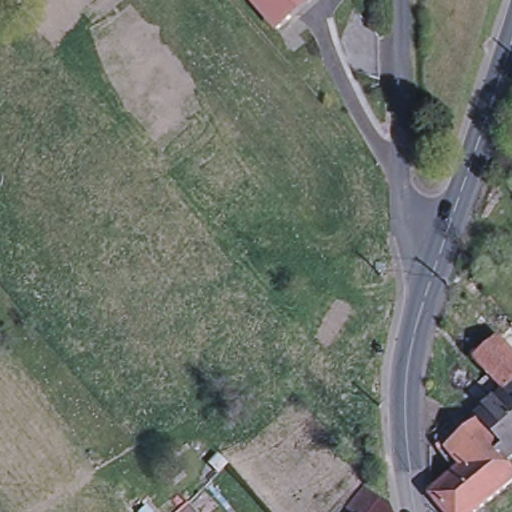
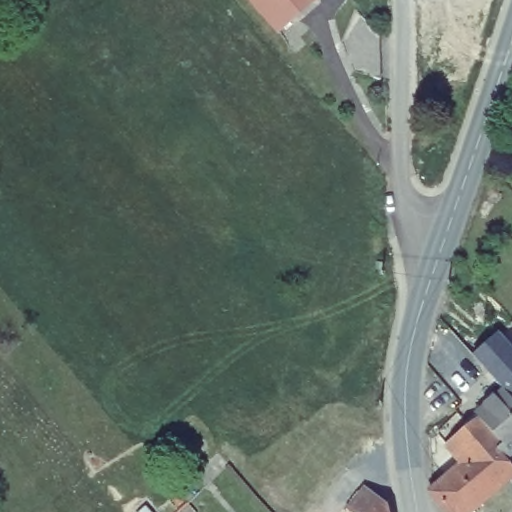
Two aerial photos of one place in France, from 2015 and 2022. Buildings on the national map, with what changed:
unchanged [(251,0),(309,0),(277,28),(251,0)]
unchanged [(355,9),(377,34),(378,81),(352,73),(341,43),(355,9)]
unchanged [(512,392),(510,390),(479,356),(512,327),(512,392)]
unchanged [(466,465),(452,447),(475,428),(485,419),(481,416),(510,390),(512,392),(512,460),(512,484),(479,512),(452,512),(433,491),(466,465)]
unchanged [(346,509),(365,488),(386,506),(388,512),(351,512),(346,509)]

